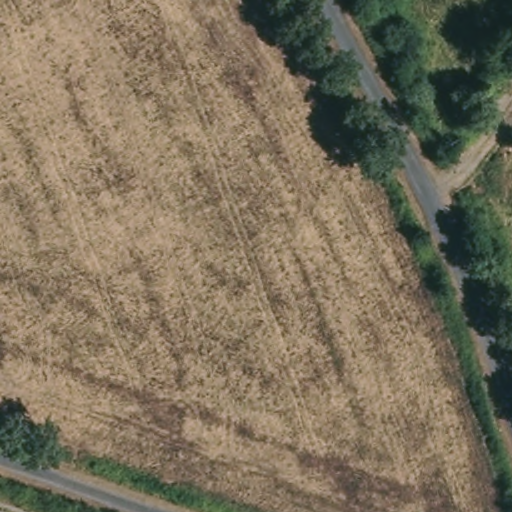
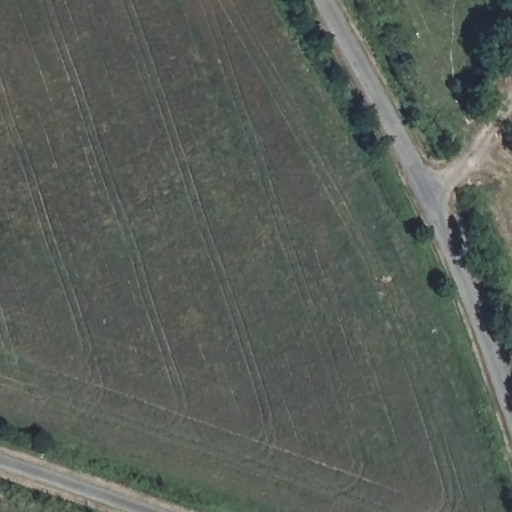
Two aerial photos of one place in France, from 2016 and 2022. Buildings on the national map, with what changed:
[]

